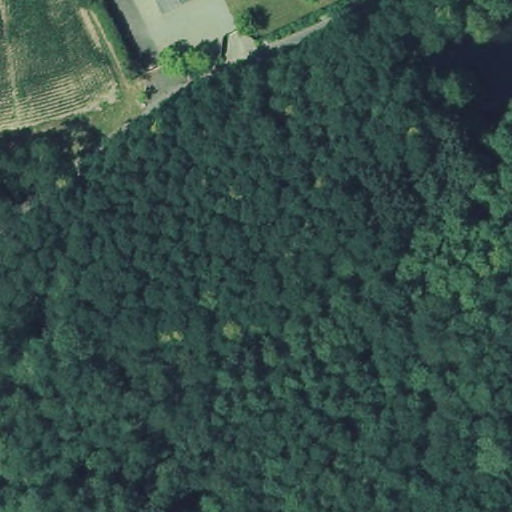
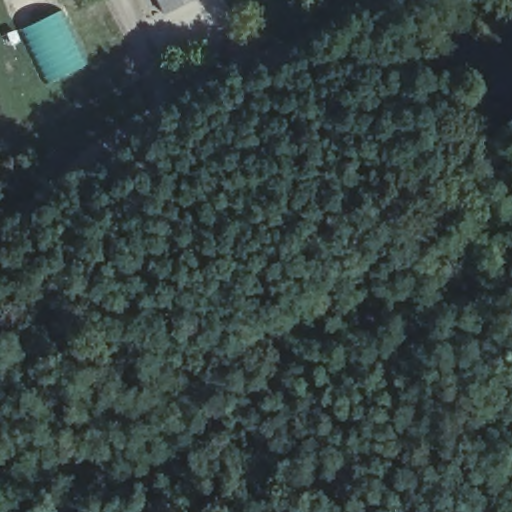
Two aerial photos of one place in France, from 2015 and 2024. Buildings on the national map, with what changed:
unchanged [(193,0),(158,14),(151,0),(193,0)]
new [(47,84),(20,30),(61,9),(88,64),(47,84)]

